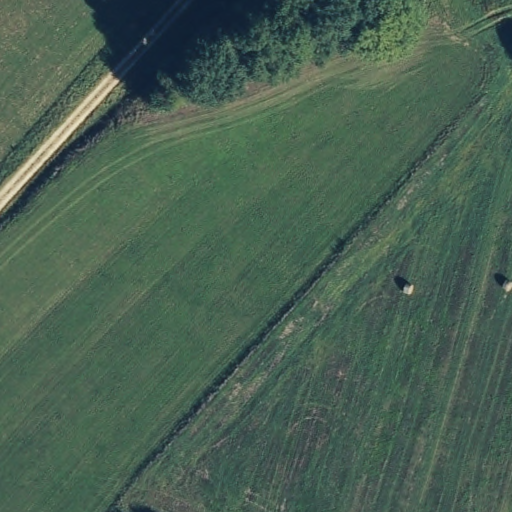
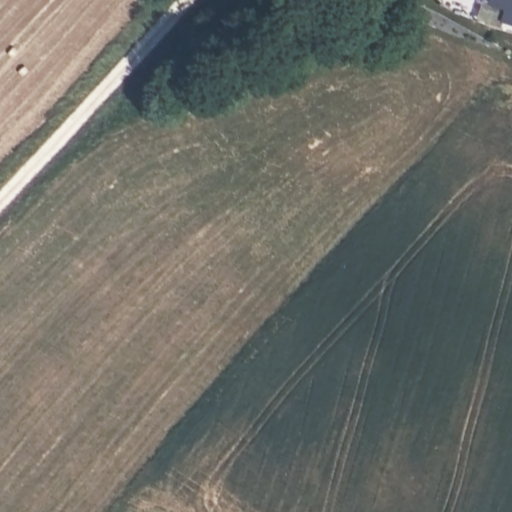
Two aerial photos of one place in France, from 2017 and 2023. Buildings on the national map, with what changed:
new [(499,20),(504,6),(486,1),(486,0),(512,0),(512,24),(499,20)]

